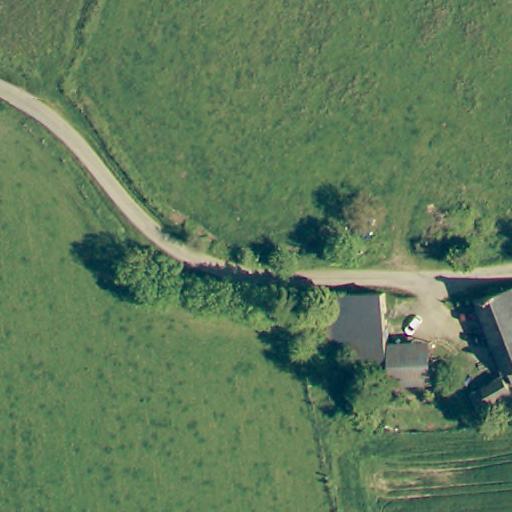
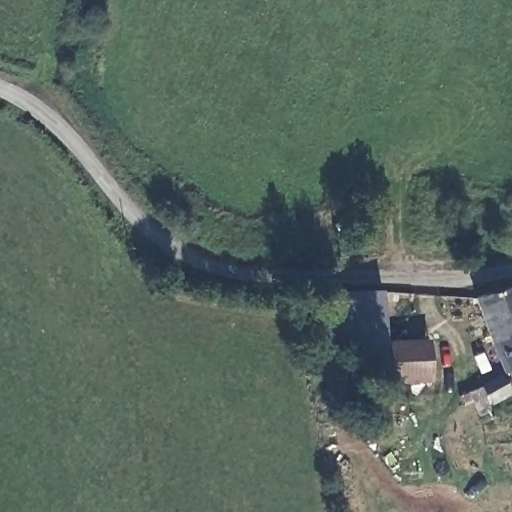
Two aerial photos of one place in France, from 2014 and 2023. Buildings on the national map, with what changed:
unchanged [(389,289),(384,338),(382,364),(351,360),(353,333),(330,330),(334,288),(348,287),(389,289)]
unchanged [(486,294),(512,291),(512,342),(497,346),(486,294)]
unchanged [(381,377),(382,364),(384,338),(426,343),(423,369),(421,382),(397,379),(381,377)]
unchanged [(512,342),(512,375),(503,377),(497,346),(512,342)]
unchanged [(466,412),(463,388),(477,385),(496,382),(499,402),(483,404),(484,409),(466,412)]

